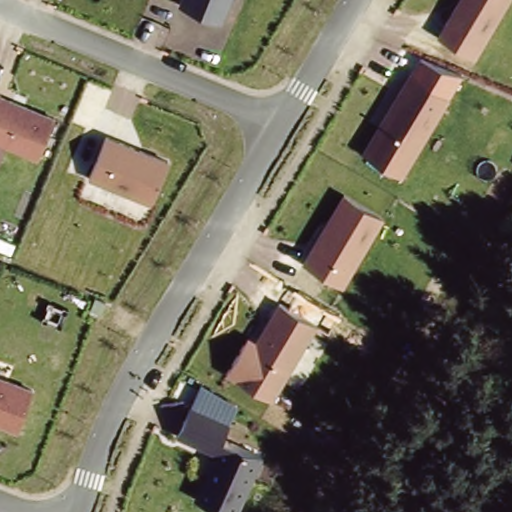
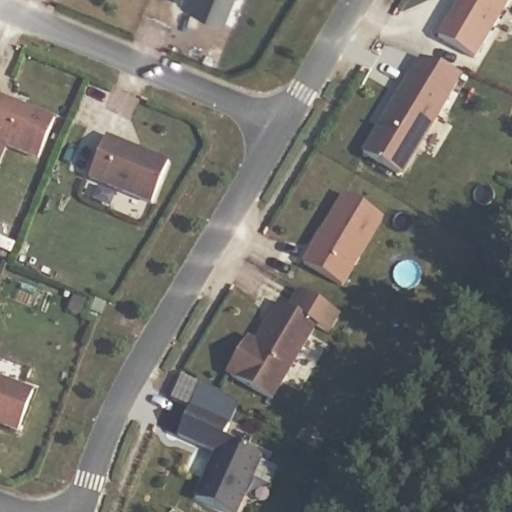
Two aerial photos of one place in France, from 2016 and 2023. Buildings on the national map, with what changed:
unchanged [(177,0),(230,0),(221,21),(176,3),(177,0)]
unchanged [(476,56),(437,34),(457,0),(510,0),(476,56)]
unchanged [(451,97),(403,175),(361,150),(408,74),(451,97)]
unchanged [(56,118),(40,160),(0,145),(0,96),(56,118)]
unchanged [(103,137),(166,163),(152,203),(87,175),(103,137)]
unchanged [(341,192),(384,215),(342,285),(303,260),(341,192)]
unchanged [(257,339),(280,301),(317,324),(273,399),(226,373),(248,335),(257,339)]
unchanged [(31,386),(16,429),(0,424),(0,377),(31,386)]
unchanged [(190,404),(230,421),(225,438),(238,443),(263,454),(238,512),(230,512),(195,496),(214,453),(177,437),(190,404)]

